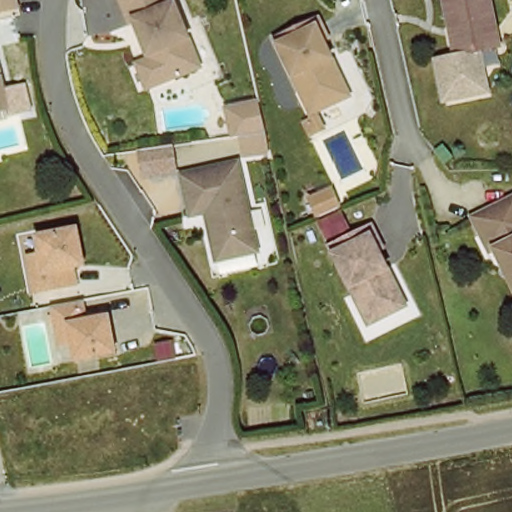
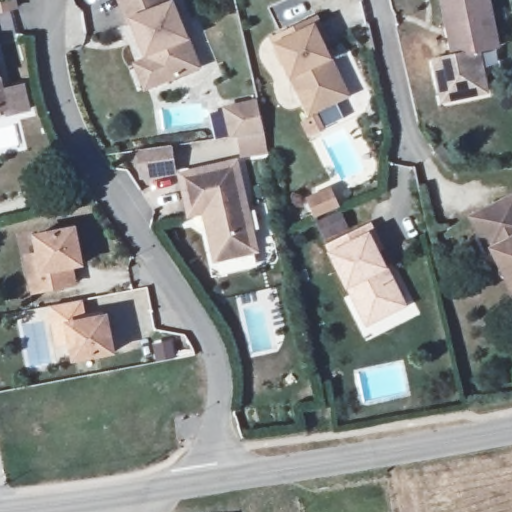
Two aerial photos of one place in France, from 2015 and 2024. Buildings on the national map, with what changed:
unchanged [(147,52),(153,51),(148,13),(144,13),(142,0),(172,0),(174,8),(181,7),(189,76),(176,76),(176,83),(167,84),(166,78),(150,81),(142,82),(138,53),(147,52)]
unchanged [(483,46),(487,66),(483,71),(471,74),(467,80),(469,86),(446,91),(439,54),(458,51),(455,34),(453,22),(449,0),(495,0),(503,43),(483,46)]
unchanged [(312,117),(275,43),(312,24),(316,21),(328,44),(323,46),(331,62),(350,98),(344,101),(312,117)]
unchanged [(5,95),(7,108),(0,110),(0,96),(5,95)]
unchanged [(237,142),(234,115),(260,109),(267,138),(237,143),(237,142)]
unchanged [(253,255),(214,264),(201,212),(193,214),(184,174),(240,161),(258,234),(262,253),(253,255)]
unchanged [(496,255),(492,257),(483,240),(475,223),(512,204),(512,287),(496,255)]
unchanged [(400,311),(379,322),(368,327),(330,248),(367,230),(371,228),(383,252),(379,254),(387,271),(405,309),(400,311)]
unchanged [(64,285),(31,294),(26,275),(22,258),(34,255),(30,238),(69,229),(77,264),(67,266),(71,284),(64,285)]
unchanged [(55,330),(49,309),(82,303),(86,323),(106,318),(115,353),(76,363),(71,344),(59,347),(55,330)]

